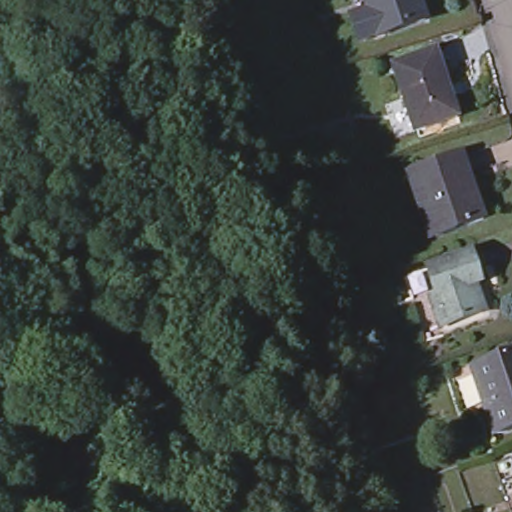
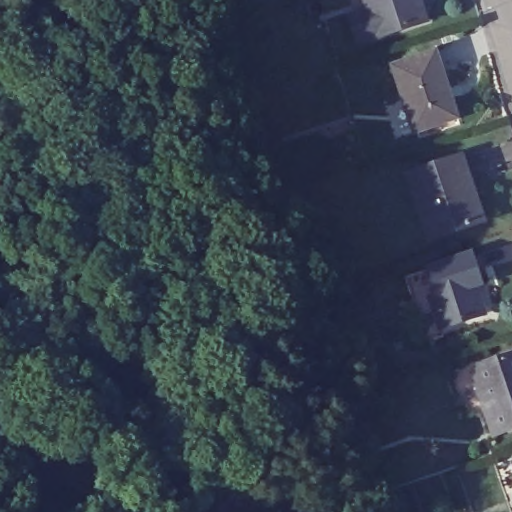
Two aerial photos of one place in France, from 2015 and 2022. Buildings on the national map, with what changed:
unchanged [(420,0),(425,18),(378,34),(367,0),(420,0)]
unchanged [(414,131),(393,66),(437,52),(450,94),(457,117),(427,127),(414,131)]
unchanged [(248,107),(245,96),(241,84),(255,79),(258,91),(262,102),(248,107)]
unchanged [(461,154),(483,218),(430,236),(419,205),(407,173),(418,169),(461,154)]
unchanged [(441,326),(432,297),(438,294),(429,267),(471,252),(481,281),(475,283),(476,288),(485,311),(441,326)]
unchanged [(512,359),(512,433),(495,438),(472,372),(512,359)]

